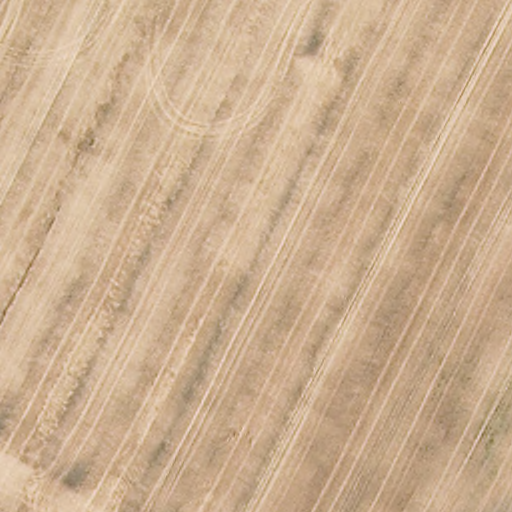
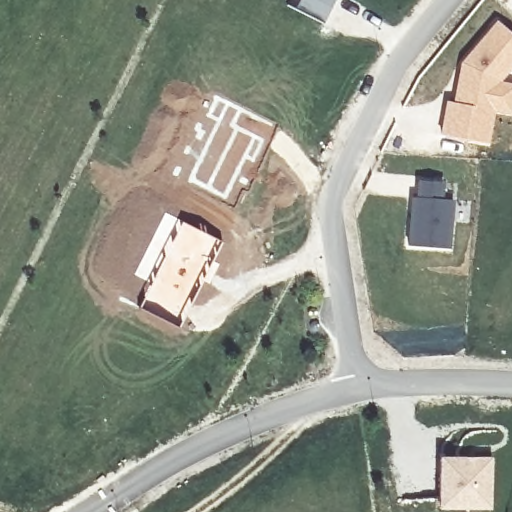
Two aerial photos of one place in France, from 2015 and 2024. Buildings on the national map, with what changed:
new [(334,0),(323,22),(294,6),(297,0),(334,0)]
new [(460,62),(497,21),(512,35),(512,67),(498,82),(512,86),(512,112),(512,115),(494,112),(487,145),(439,134),(445,102),(453,103),(460,62)]
new [(450,248),(407,245),(411,197),(415,198),(417,181),(442,183),(441,200),(453,201),(450,248)]
new [(165,211),(177,217),(149,281),(134,274),(165,211)]
new [(149,281),(177,217),(220,238),(178,319),(140,302),(149,281)]
new [(440,458),(483,458),(485,502),(439,503),(440,458)]

